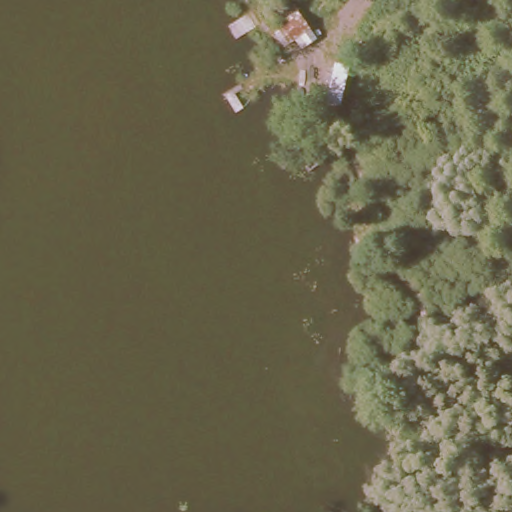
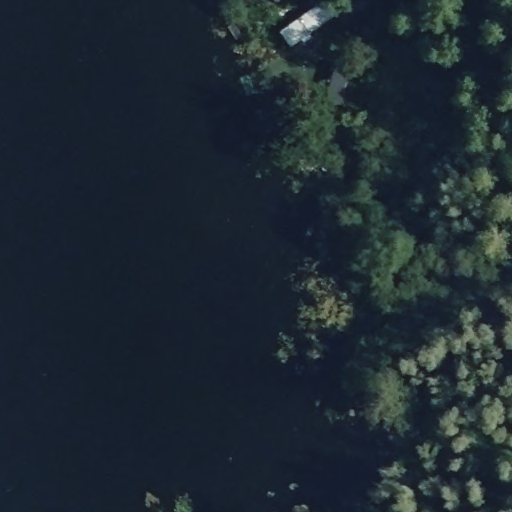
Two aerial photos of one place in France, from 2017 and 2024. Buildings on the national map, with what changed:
unchanged [(305,30),(314,45),(292,59),(283,45),(305,30)]

